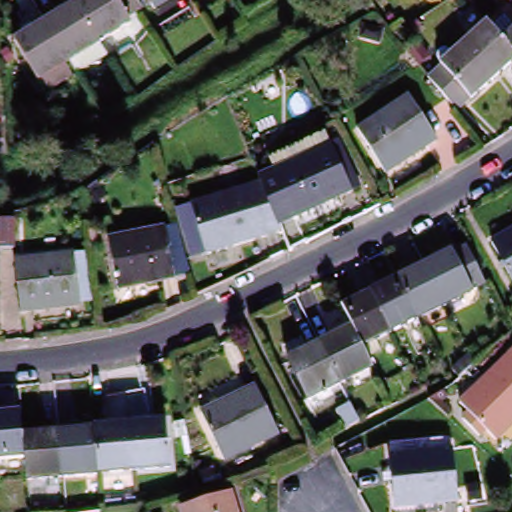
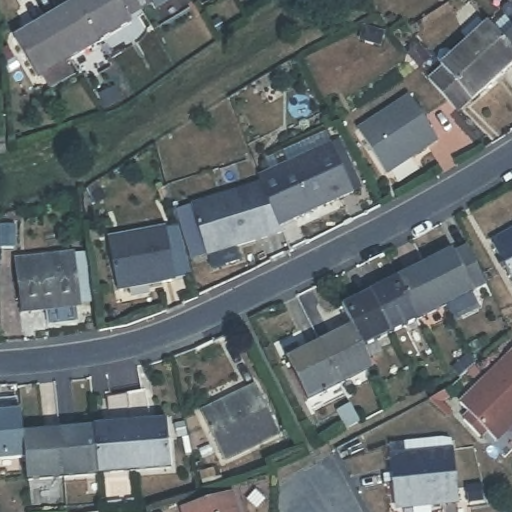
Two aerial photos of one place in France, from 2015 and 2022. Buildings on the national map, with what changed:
unchanged [(99,41),(79,7),(76,3),(80,0),(118,0),(131,23),(99,41)]
unchanged [(151,0),(167,0),(156,7),(151,0)]
unchanged [(68,60),(67,58),(63,51),(45,21),(76,3),(79,7),(99,41),(68,60)]
unchanged [(39,78),(16,38),(45,21),(63,51),(67,58),(68,60),(39,78)]
unchanged [(494,84),(472,58),(465,50),(489,29),(504,46),(512,56),(512,67),(494,84)]
unchanged [(504,46),(512,39),(512,56),(504,46)]
unchanged [(471,105),(469,104),(459,113),(455,116),(428,85),(431,82),(441,73),(441,71),(465,50),(472,58),(494,84),(471,105)]
unchanged [(357,131),(407,98),(437,140),(386,175),(357,131)]
unchanged [(0,138),(1,138),(3,153),(0,153),(0,138)]
unchanged [(277,182),(274,175),(287,168),(342,143),(363,190),(308,215),(294,221),(277,182)]
unchanged [(194,225),(188,207),(202,203),(261,185),(274,181),(291,229),(276,235),(218,253),(204,257),(194,225)]
unchanged [(2,223),(16,223),(16,226),(16,250),(2,249),(2,233),(2,223)]
unchanged [(119,288),(110,237),(166,226),(176,277),(119,288)]
unchanged [(492,240),(512,228),(512,276),(492,240)]
unchanged [(422,266),(449,253),(451,254),(463,249),(481,285),(468,291),(469,293),(442,307),(422,266)]
unchanged [(17,257),(75,250),(75,251),(86,250),(91,299),(80,300),(81,302),(23,309),(17,257)]
unchanged [(410,315),(394,280),(422,266),(442,307),(414,321),(410,315)]
unchanged [(410,315),(414,321),(387,335),(366,294),(394,280),(410,315)]
unchanged [(336,385),(323,360),(315,345),(348,329),(337,309),(366,294),(387,335),(373,342),(378,352),(363,359),(368,369),(336,385)]
unchanged [(303,401),(283,361),(315,345),(323,360),(336,385),(303,401)]
unchanged [(464,424),(473,417),(460,404),(504,362),(512,353),(512,426),(497,442),(487,431),(479,439),(464,424)]
unchanged [(449,374),(471,354),(477,366),(475,367),(457,383),(449,374)]
unchanged [(224,456),(201,409),(256,382),(279,429),(224,456)]
unchanged [(108,429),(105,395),(128,393),(146,392),(149,425),(168,424),(172,468),(135,471),(99,475),(95,430),(108,429)]
unchanged [(347,431),(339,413),(351,406),(360,424),(347,431)]
unchanged [(22,451),(23,460),(0,461),(0,417),(19,415),(22,451)]
unchanged [(28,481),(26,460),(23,460),(22,451),(19,415),(21,415),(23,436),(59,433),(63,478),(28,481)]
unchanged [(63,478),(59,433),(95,430),(99,475),(63,478)]
unchanged [(397,503),(392,452),(452,446),(458,498),(397,503)]
unchanged [(178,495),(228,481),(237,512),(183,512),(178,495)]

